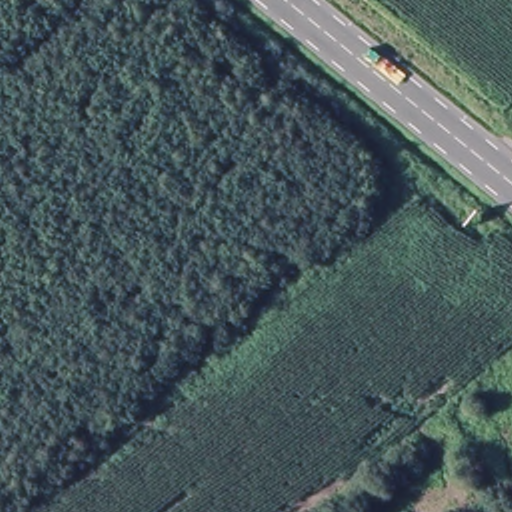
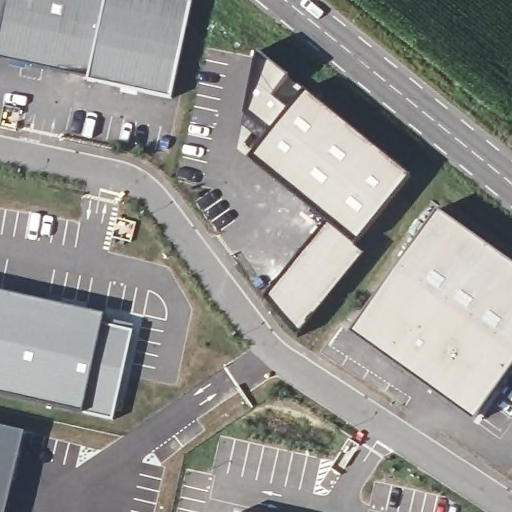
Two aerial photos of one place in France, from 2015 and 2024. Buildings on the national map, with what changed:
new [(190,0),(170,99),(87,81),(88,76),(0,59),(0,31),(7,0),(190,0)]
new [(297,325),(272,297),(332,220),(254,158),(274,133),(249,114),(261,50),(417,172),(363,243),(373,251),(344,288),(307,336),(297,325)]
new [(349,331),(424,226),(437,207),(443,211),(512,261),(512,367),(478,414),(474,421),(400,368),(349,331)]
new [(112,420),(83,412),(0,395),(0,291),(104,315),(102,325),(132,331),(112,420)]
new [(26,430),(7,512),(0,512),(0,424),(26,430)]

